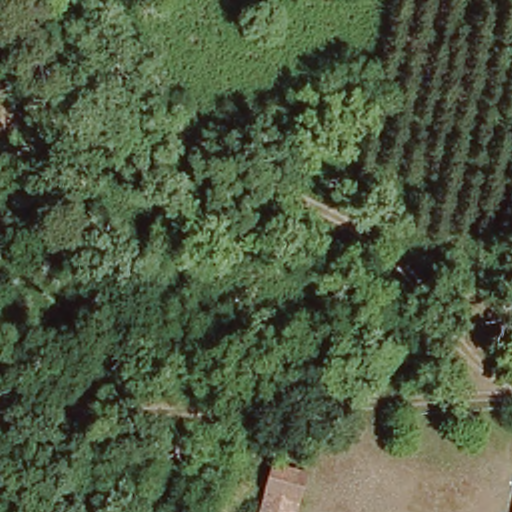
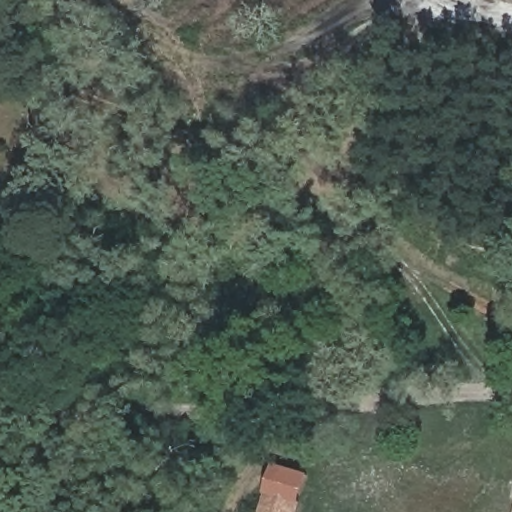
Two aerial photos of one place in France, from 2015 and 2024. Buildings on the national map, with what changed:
unchanged [(297,505),(253,492),(254,487),(262,458),(306,477),(297,505)]
unchanged [(295,512),(247,512),(253,492),(297,505),(295,512)]

